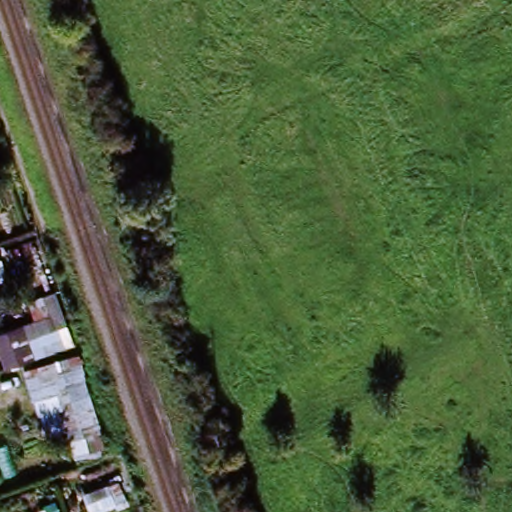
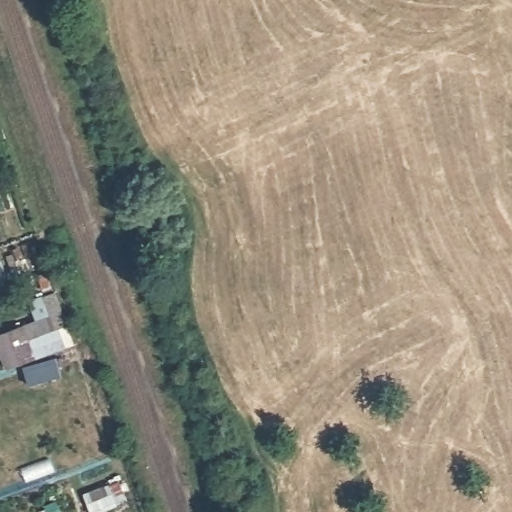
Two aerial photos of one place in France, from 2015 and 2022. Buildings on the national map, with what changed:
unchanged [(7,370),(0,353),(0,339),(36,329),(29,305),(60,297),(75,349),(7,370)]
unchanged [(83,361),(112,459),(97,464),(92,436),(82,438),(69,388),(32,405),(25,378),(83,361)]

